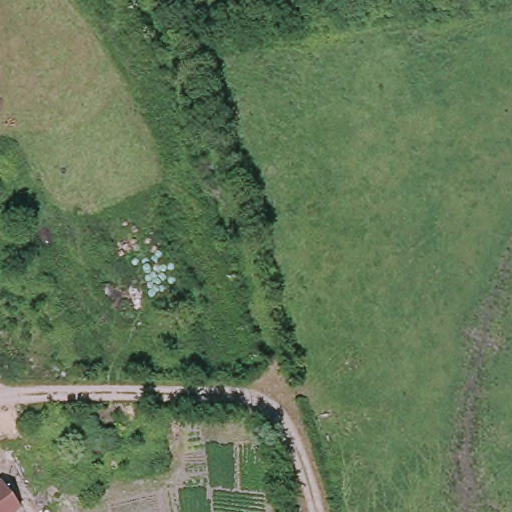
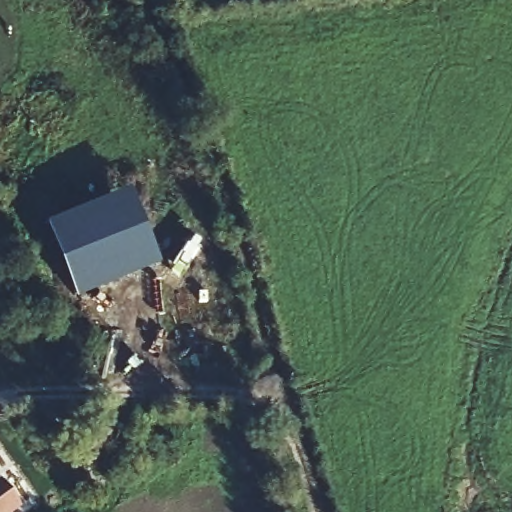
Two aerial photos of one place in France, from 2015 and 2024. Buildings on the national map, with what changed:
new [(75,300),(45,226),(129,192),(159,266),(75,300)]
unchanged [(17,507),(10,512),(0,512),(0,481),(2,479),(17,507)]

